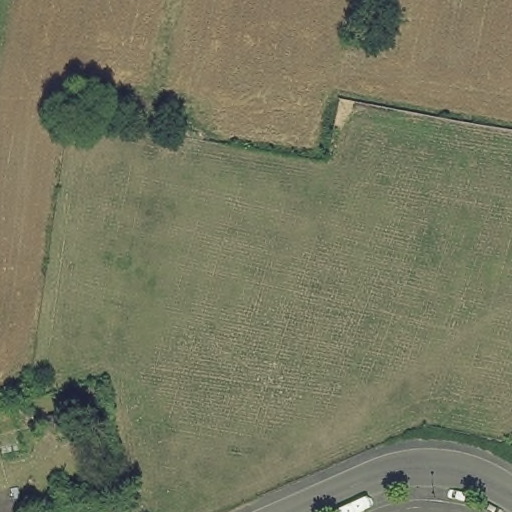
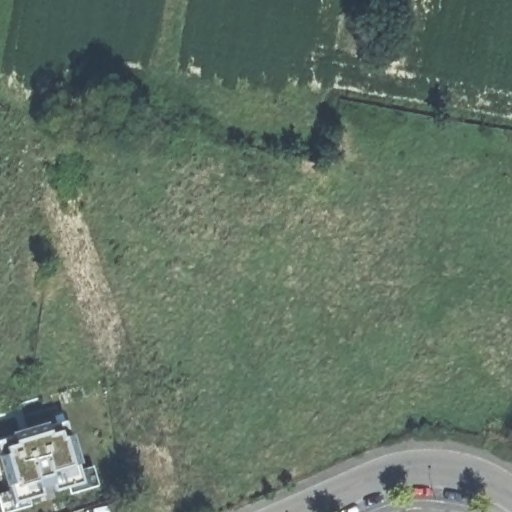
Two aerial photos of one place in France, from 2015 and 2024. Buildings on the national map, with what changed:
unchanged [(128,114),(78,110),(82,71),(132,81),(128,114)]
new [(10,432),(47,421),(48,425),(65,420),(69,434),(72,433),(80,463),(78,463),(79,470),(92,466),(98,485),(71,493),(69,487),(54,491),(51,483),(40,486),(43,494),(28,499),(30,502),(2,511),(0,506),(0,493),(9,490),(7,484),(4,485),(0,472),(0,440),(12,436),(10,432)]

